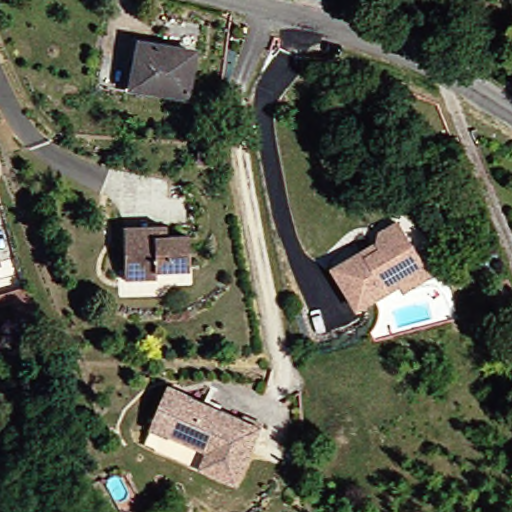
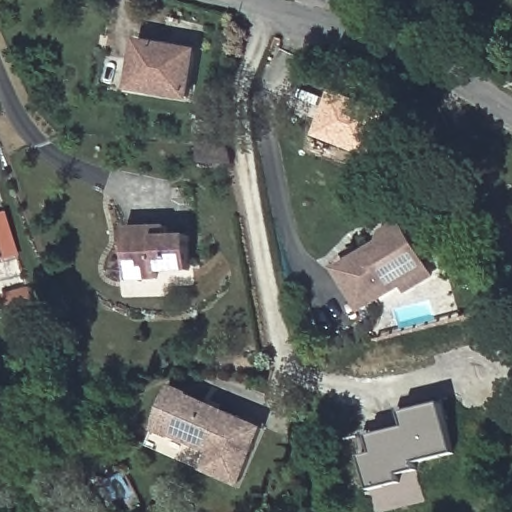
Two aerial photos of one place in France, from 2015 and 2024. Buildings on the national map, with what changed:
unchanged [(179,104),(119,94),(128,46),(187,56),(179,104)]
new [(382,112),(365,154),(312,136),(328,91),(382,112)]
unchanged [(411,290),(407,283),(364,313),(338,275),(375,249),(383,244),(385,234),(401,222),(427,261),(436,273),(411,290)]
unchanged [(160,236),(183,235),(184,270),(151,271),(151,277),(120,278),(119,237),(119,226),(139,226),(160,225),(160,236)]
unchanged [(0,308),(0,297),(16,293),(25,320),(9,323),(7,322),(3,307),(0,308)]
unchanged [(260,427),(235,486),(142,446),(167,387),(260,427)]
new [(362,457),(374,455),(369,432),(401,426),(398,410),(442,401),(455,455),(415,462),(417,471),(397,475),(399,483),(370,491),(362,457)]

